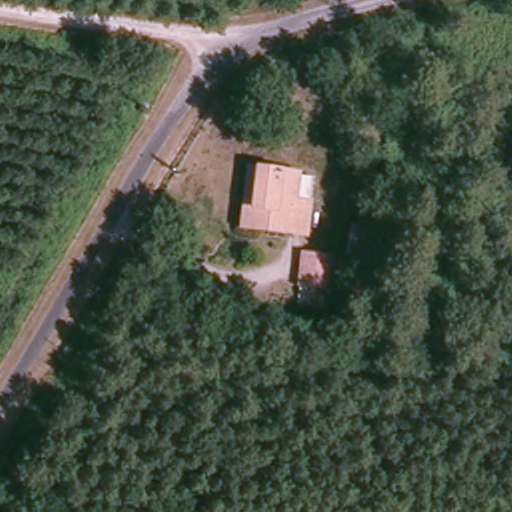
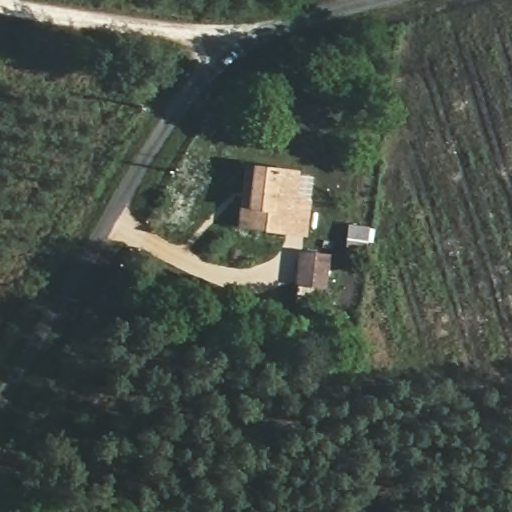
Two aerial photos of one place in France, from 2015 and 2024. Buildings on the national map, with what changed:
unchanged [(305,235),(242,234),(245,167),(310,168),(305,235)]
unchanged [(365,258),(343,258),(346,224),(366,224),(365,258)]
unchanged [(323,285),(296,283),(300,248),(325,250),(323,285)]

